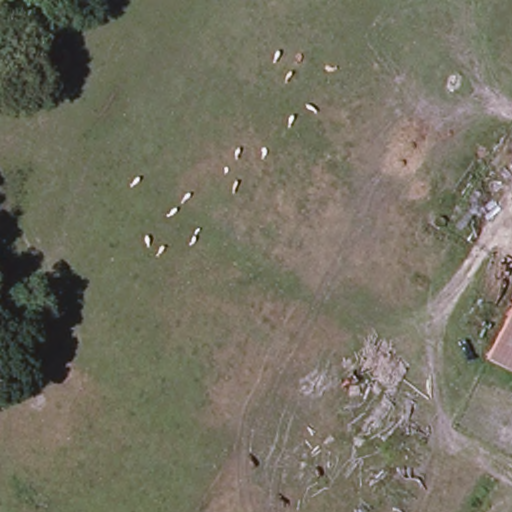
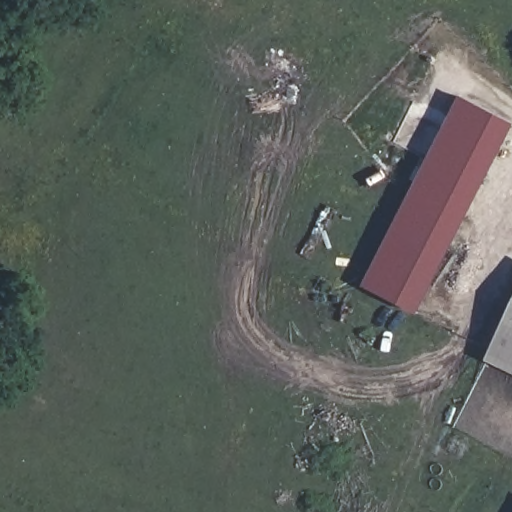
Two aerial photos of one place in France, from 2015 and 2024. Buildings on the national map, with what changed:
new [(364,285),(461,96),(512,122),(512,132),(419,313),(364,285)]
unchanged [(512,314),(512,328),(506,325),(512,314)]
unchanged [(506,325),(512,328),(512,371),(489,359),(506,325)]

